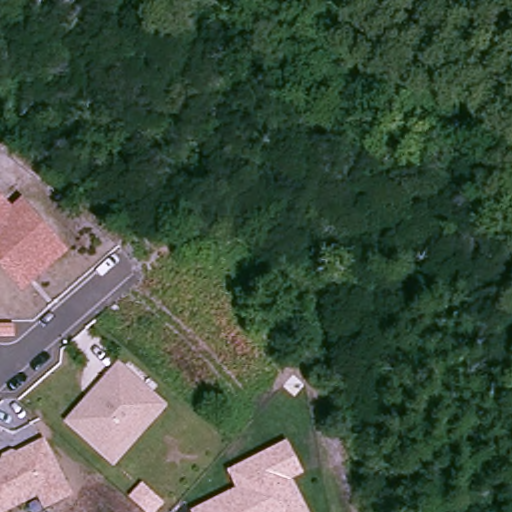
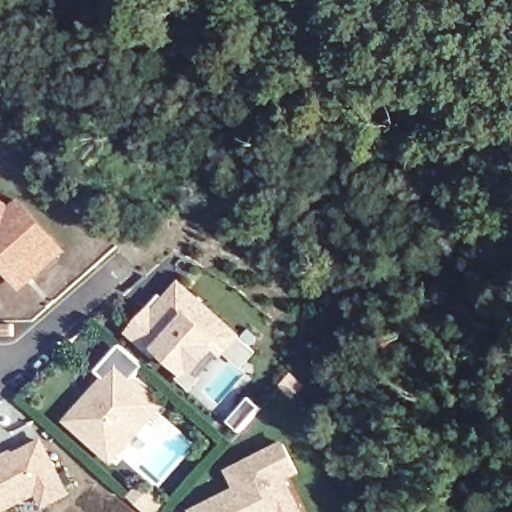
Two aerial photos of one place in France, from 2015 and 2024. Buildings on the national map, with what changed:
unchanged [(14,215),(24,206),(67,255),(36,282),(0,241),(0,199),(14,215)]
new [(150,305),(154,307),(180,278),(244,335),(241,336),(260,352),(243,368),(225,353),(223,357),(221,356),(192,391),(177,379),(181,373),(159,353),(154,359),(126,333),(150,305)]
unchanged [(12,323),(12,334),(0,334),(0,323),(12,323)]
unchanged [(122,447),(111,460),(67,420),(87,398),(97,387),(117,365),(142,387),(161,404),(122,447)]
unchanged [(305,475),(292,482),(307,512),(191,512),(190,508),(236,488),(227,470),(287,440),(305,475)]
unchanged [(11,512),(0,512),(0,469),(10,465),(7,461),(16,456),(19,460),(46,446),(72,497),(54,506),(49,509),(42,495),(11,512)]

